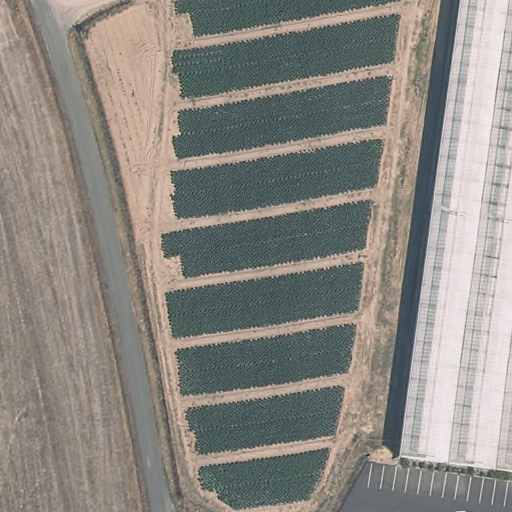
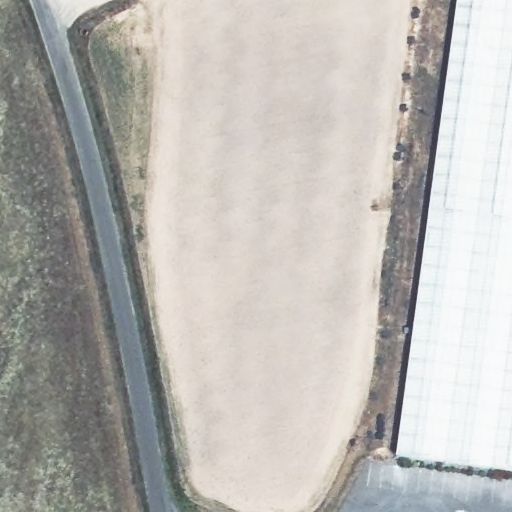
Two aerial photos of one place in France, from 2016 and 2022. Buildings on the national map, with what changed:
unchanged [(470,0),(512,0),(512,472),(406,458),(470,0)]

